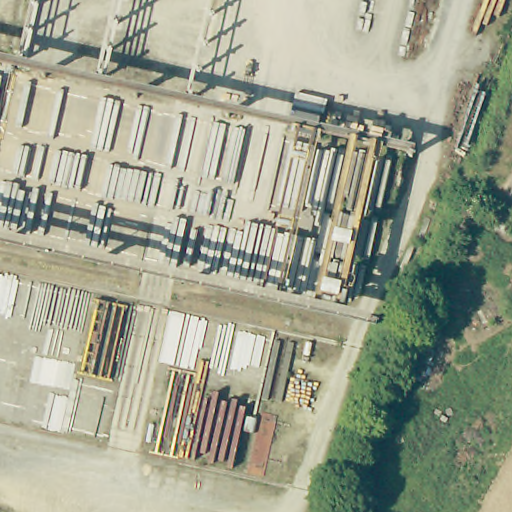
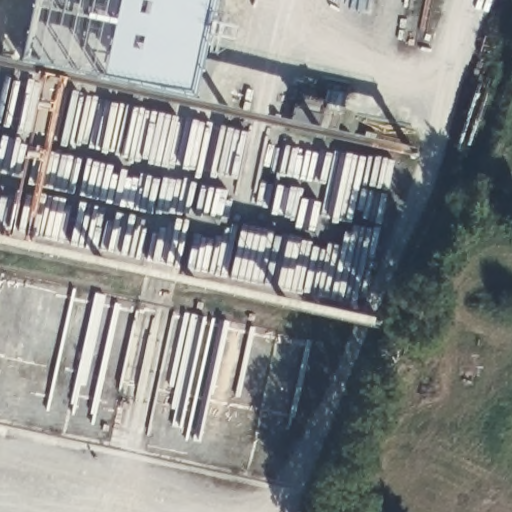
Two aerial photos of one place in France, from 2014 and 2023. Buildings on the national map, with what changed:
new [(25,61),(38,0),(215,0),(194,97),(25,61)]

